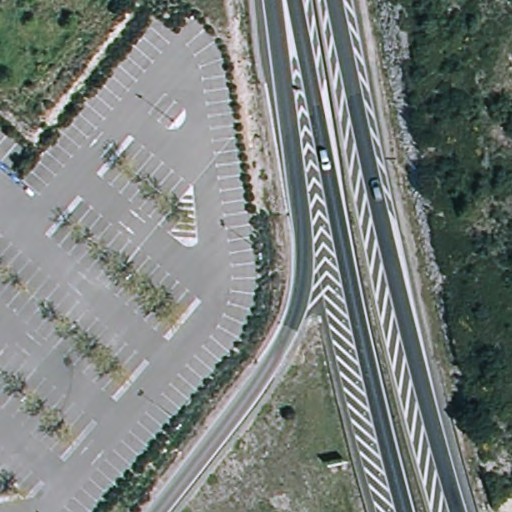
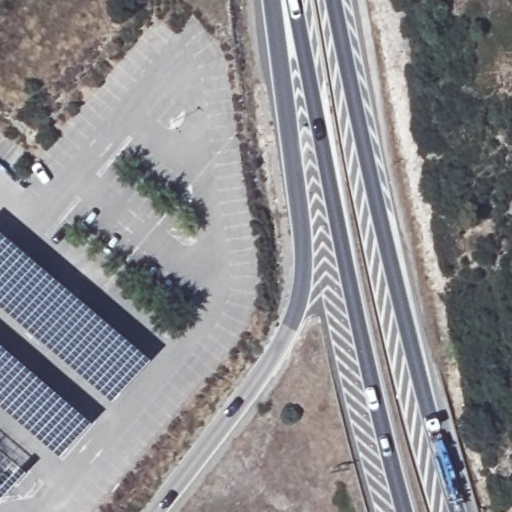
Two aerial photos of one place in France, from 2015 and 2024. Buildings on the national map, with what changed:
new [(112,397),(0,305),(0,231),(95,311),(147,354),(112,397)]
new [(58,453),(0,405),(0,342),(88,417),(58,453)]
new [(0,494),(0,444),(24,463),(0,494)]

